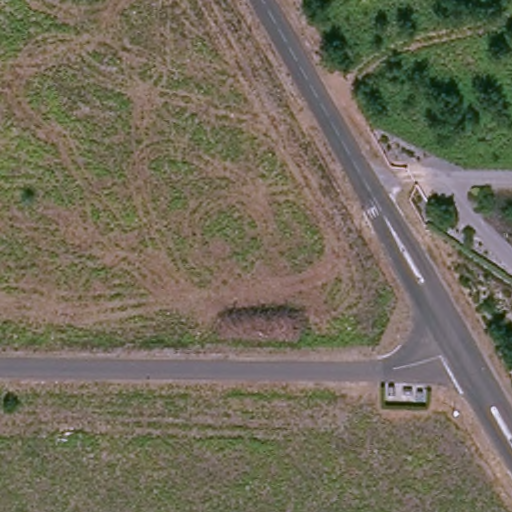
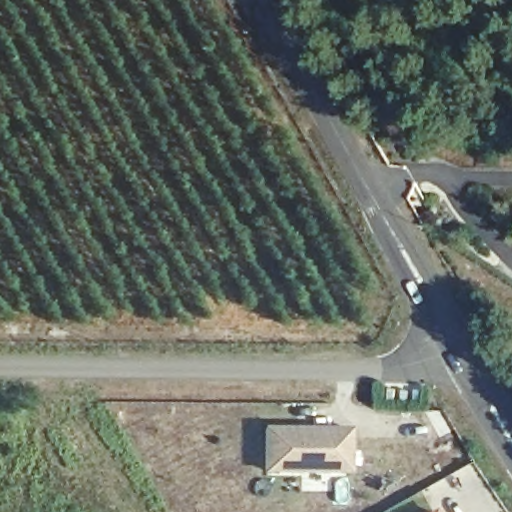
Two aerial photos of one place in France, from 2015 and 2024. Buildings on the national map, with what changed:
new [(261,425),(345,426),(345,468),(260,467),(261,425)]

